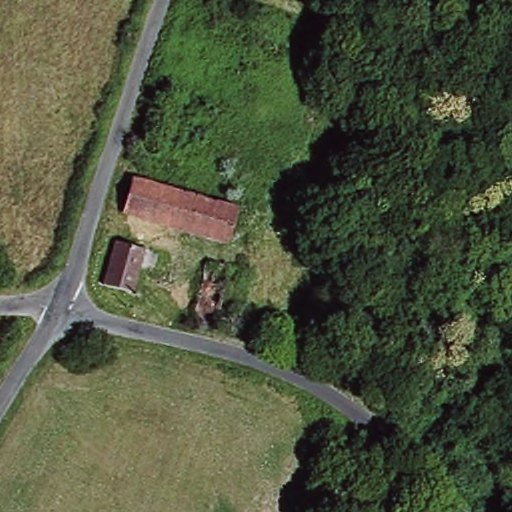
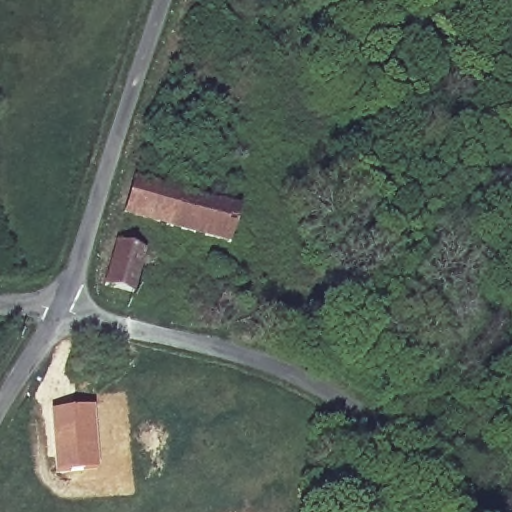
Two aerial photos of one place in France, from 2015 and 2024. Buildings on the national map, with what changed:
unchanged [(230,239),(131,211),(141,177),(239,205),(230,239)]
unchanged [(131,290),(104,280),(124,232),(150,242),(131,290)]
unchanged [(221,322),(197,320),(203,262),(229,262),(228,290),(236,291),(233,316),(221,317),(221,322)]
new [(93,407),(98,469),(55,472),(51,410),(93,407)]

